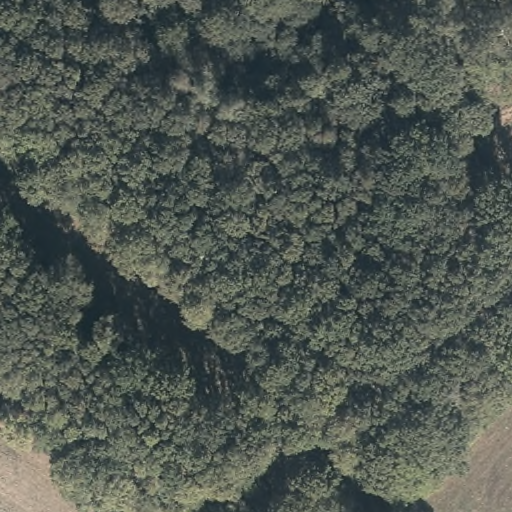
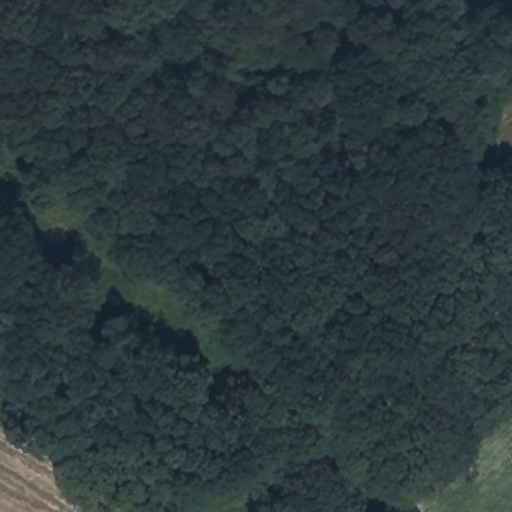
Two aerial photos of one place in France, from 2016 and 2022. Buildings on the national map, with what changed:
[]

